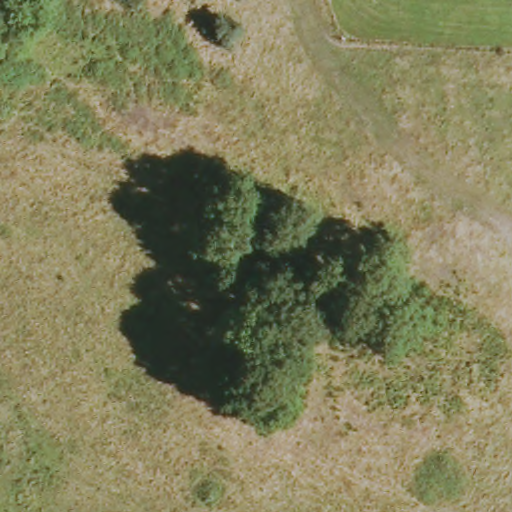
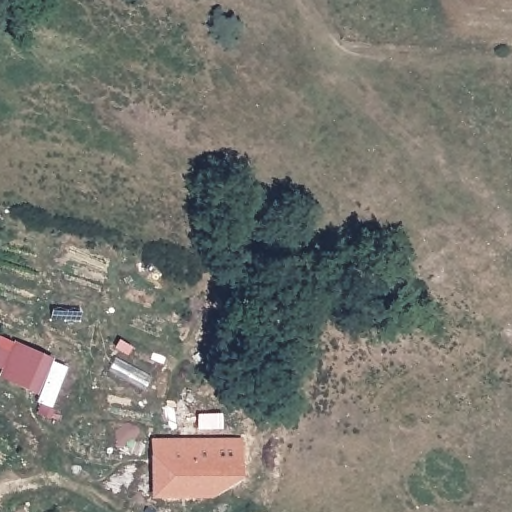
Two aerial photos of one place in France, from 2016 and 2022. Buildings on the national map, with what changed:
new [(0,376),(0,374),(3,368),(0,367),(0,336),(15,346),(17,343),(53,359),(36,394),(0,376)]
new [(150,498),(152,440),(243,437),(243,478),(211,497),(150,498)]

